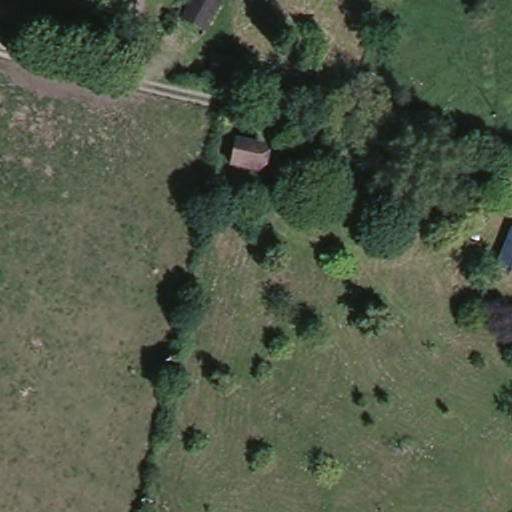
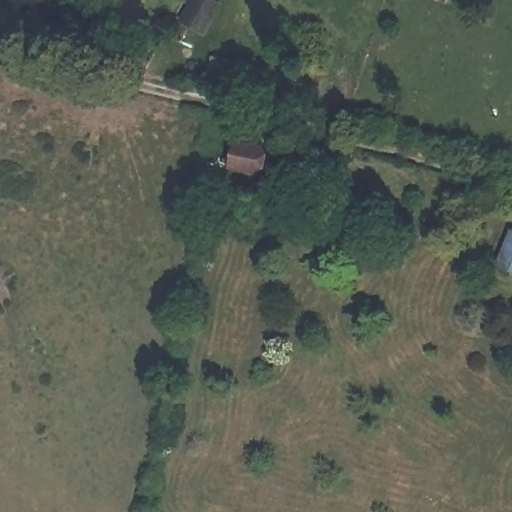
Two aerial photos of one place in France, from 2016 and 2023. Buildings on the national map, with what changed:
unchanged [(183,21),(189,11),(196,0),(216,0),(225,5),(206,36),(183,21)]
unchanged [(268,156),(264,179),(238,176),(241,151),(268,156)]
unchanged [(508,250),(512,239),(512,271),(502,267),(508,250)]

